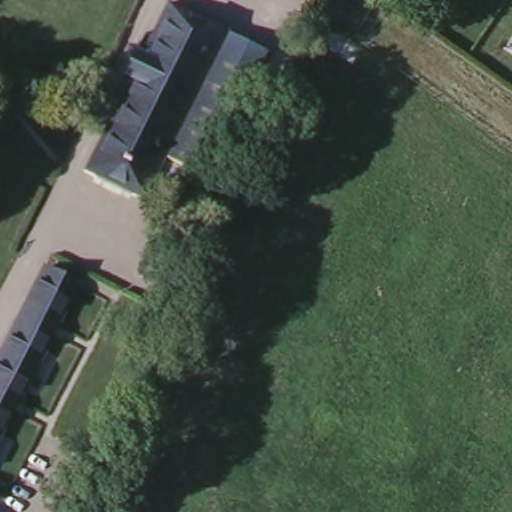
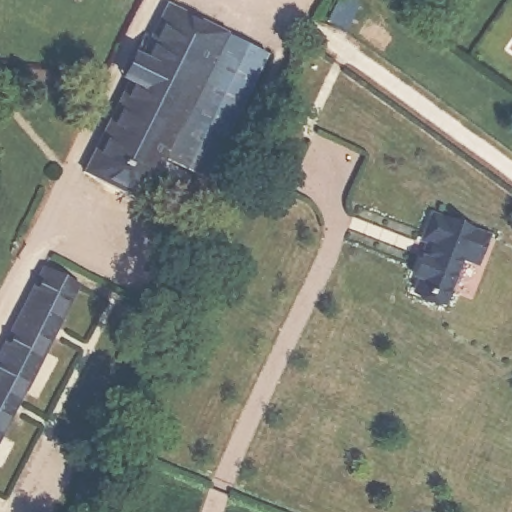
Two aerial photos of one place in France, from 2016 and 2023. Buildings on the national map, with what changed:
unchanged [(222,29),(230,33),(169,151),(183,158),(178,166),(174,173),(162,167),(143,202),(88,173),(175,5),(222,29)]
unchanged [(230,33),(222,29),(222,28),(267,50),(212,179),(178,166),(183,158),(169,151),(230,33)]
new [(483,233),(474,260),(457,254),(441,299),(412,290),(419,275),(412,273),(425,240),(418,238),(427,213),(483,233)]
unchanged [(78,285),(0,434),(0,340),(38,263),(78,285)]

